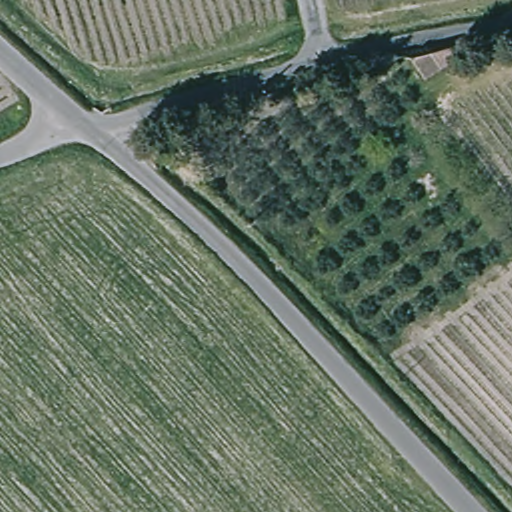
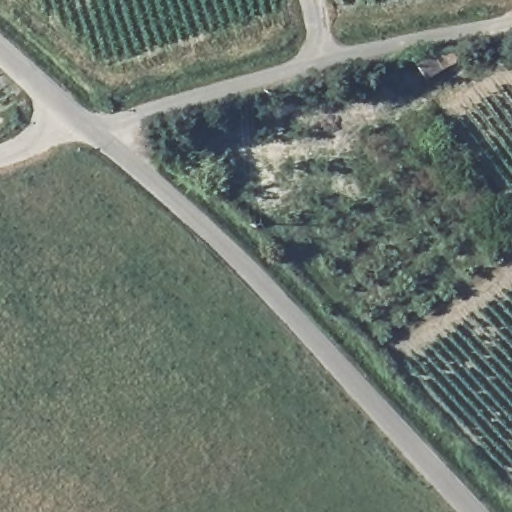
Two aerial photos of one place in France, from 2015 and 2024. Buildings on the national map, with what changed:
unchanged [(449,46),(452,59),(438,66),(425,77),(409,55),(449,46)]

